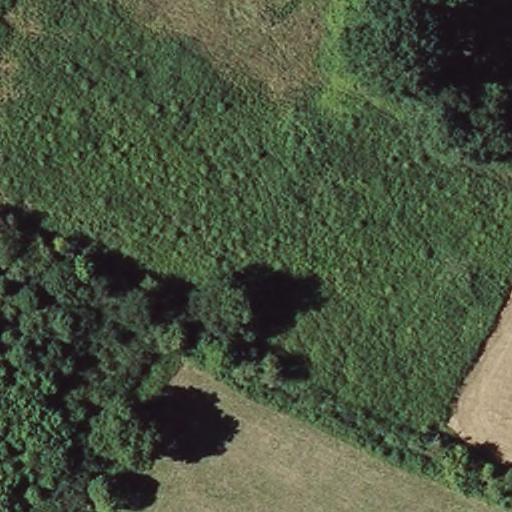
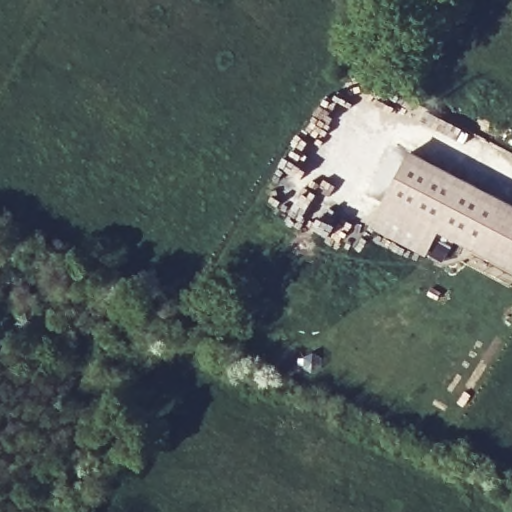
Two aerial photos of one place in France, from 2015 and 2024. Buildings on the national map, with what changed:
new [(477,249),(441,230),(387,201),(413,151),(512,204),(512,268),(477,249)]
new [(387,201),(441,230),(428,254),(375,225),(387,201)]

